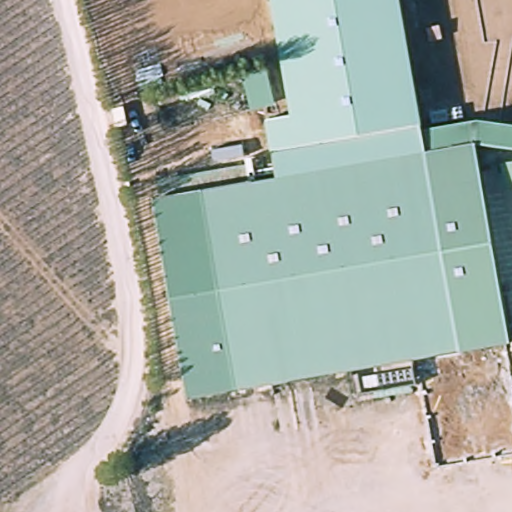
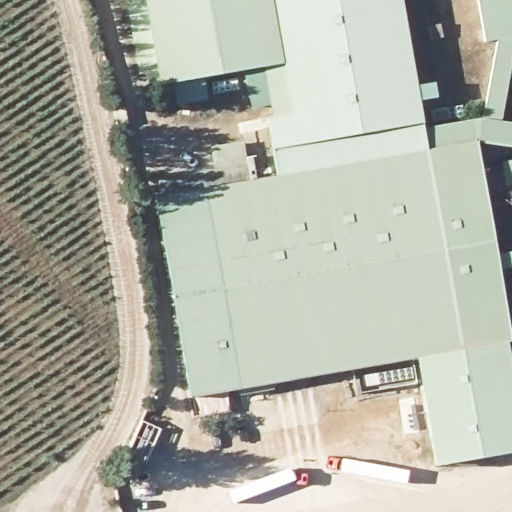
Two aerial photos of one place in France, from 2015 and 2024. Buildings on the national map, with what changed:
new [(270,106),(251,109),(243,71),(158,87),(143,88),(127,0),(272,0),(293,116),(272,120),(270,106)]
unchanged [(394,133),(398,154),(280,178),(268,121),(293,116),(272,0),(403,0),(425,127),(394,133)]
new [(495,40),(485,41),(477,0),(512,0),(512,60),(501,119),(480,116),(495,40)]
unchanged [(105,111),(115,108),(120,126),(110,128),(105,111)]
unchanged [(394,133),(480,116),(512,121),(512,146),(476,139),(425,149),(398,154),(394,133)]
unchanged [(476,139),(512,320),(512,338),(465,347),(425,149),(476,139)]
new [(257,182),(203,193),(161,202),(156,179),(213,169),(210,148),(245,141),(246,157),(252,156),(257,182)]
unchanged [(243,392),(203,193),(398,154),(425,149),(465,347),(243,392)]
unchanged [(243,392),(189,404),(156,203),(203,193),(243,392)]
new [(512,377),(512,453),(435,466),(416,357),(465,347),(506,339),(512,377)]

